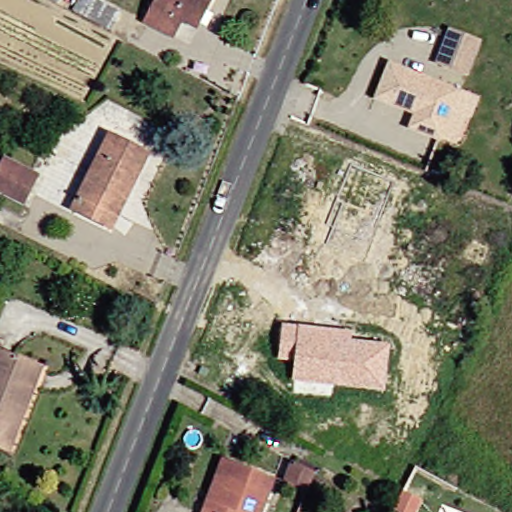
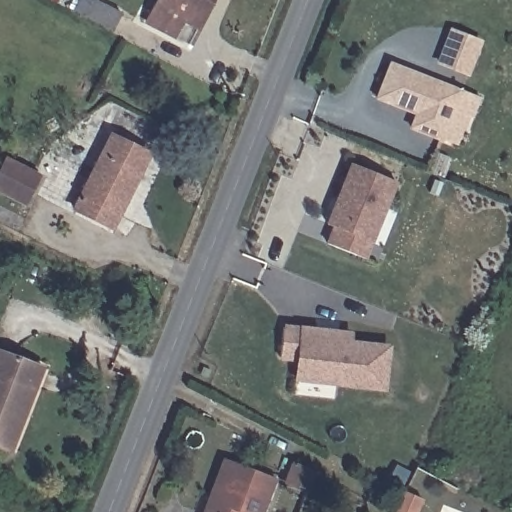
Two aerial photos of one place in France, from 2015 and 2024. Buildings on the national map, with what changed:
unchanged [(95,0),(126,16),(117,31),(79,11),(86,0),(95,0)]
unchanged [(143,23),(152,0),(198,0),(189,26),(172,21),(168,33),(143,23)]
unchanged [(451,31),(477,41),(465,73),(438,63),(451,31)]
unchanged [(382,99),(396,65),(462,91),(442,140),(413,129),(420,114),(410,111),(382,99)]
unchanged [(67,209),(74,197),(105,136),(130,149),(142,154),(130,178),(105,228),(67,209)]
unchanged [(50,179),(31,210),(0,192),(0,191),(17,160),(50,179)]
new [(366,259),(323,244),(330,225),(323,223),(348,161),(396,181),(366,259)]
unchanged [(351,340),(391,345),(386,394),(291,382),(293,363),(278,361),(282,325),(353,331),(351,340)]
unchanged [(0,455),(0,454),(0,356),(35,371),(25,396),(15,420),(0,455)]
unchanged [(222,459),(267,479),(251,512),(197,512),(222,459)]
demolished [(278,463),(295,473),(286,495),(267,485),(278,463)]
new [(291,464),(309,474),(300,496),(281,486),(291,464)]

